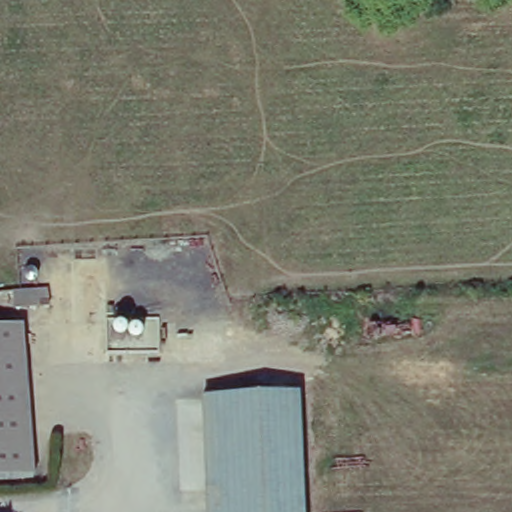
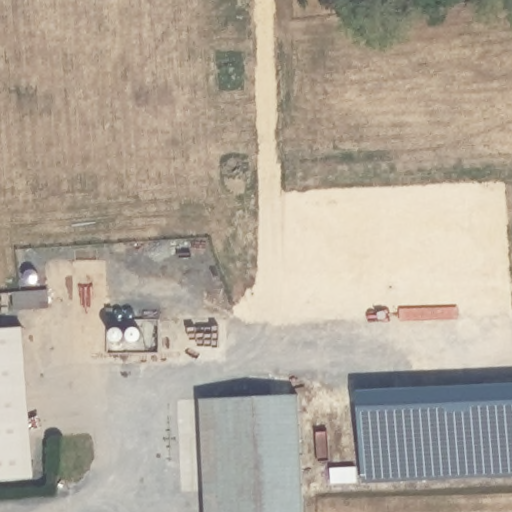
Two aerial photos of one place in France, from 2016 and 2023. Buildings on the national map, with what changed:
unchanged [(51,285),(53,307),(53,310),(0,315),(0,290),(51,285)]
unchanged [(32,324),(45,471),(0,475),(0,326),(32,324)]
unchanged [(203,395),(302,390),(307,512),(208,512),(203,395)]
new [(512,397),(512,476),(365,482),(360,404),(512,397)]
unchanged [(81,445),(83,434),(93,435),(93,445),(81,445)]

